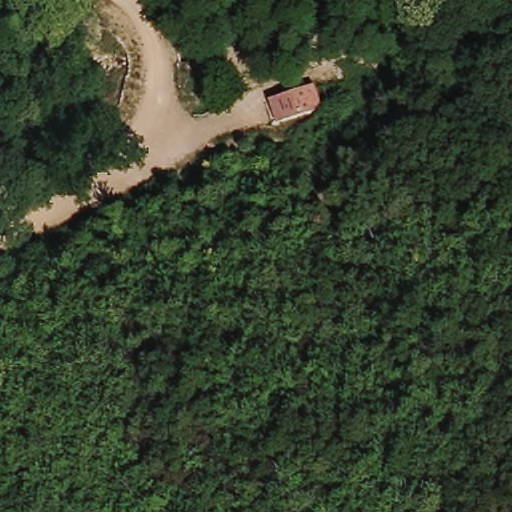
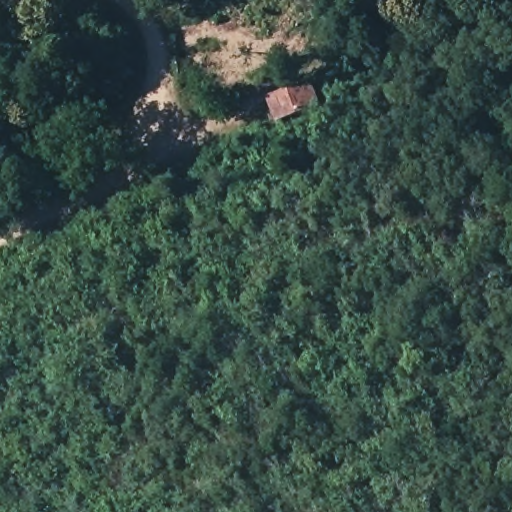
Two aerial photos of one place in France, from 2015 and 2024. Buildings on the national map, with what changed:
unchanged [(303,89),(306,112),(266,118),(263,96),(303,89)]

